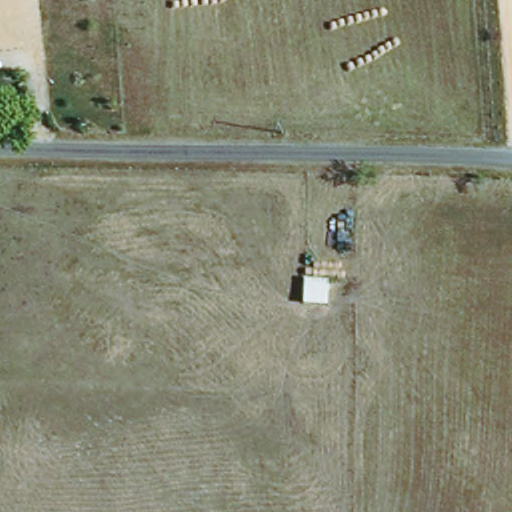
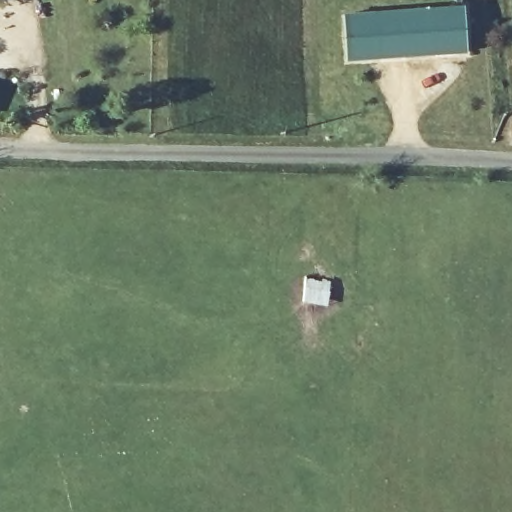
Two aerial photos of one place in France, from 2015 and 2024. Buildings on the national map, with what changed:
new [(464,7),(467,53),(343,62),(340,16),(464,7)]
unchanged [(304,277),(331,278),(331,303),(304,303),(304,277)]

